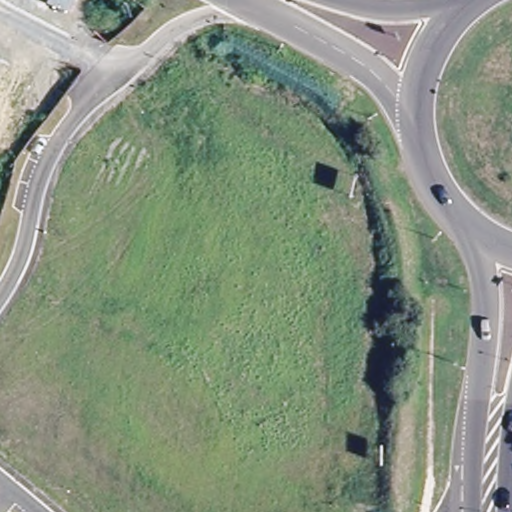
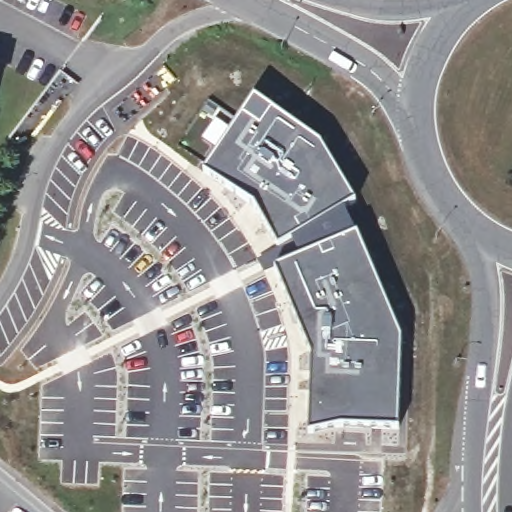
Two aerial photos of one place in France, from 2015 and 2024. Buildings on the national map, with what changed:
new [(216,117),(232,128),(254,97),(320,143),(356,202),(344,209),(356,231),(283,261),(269,233),(252,207),(239,196),(204,171),(218,149),(202,138),(216,117)]
new [(283,261),(356,231),(401,337),(399,427),(340,429),(308,432),(307,352),(274,272),(272,267),(283,261)]

